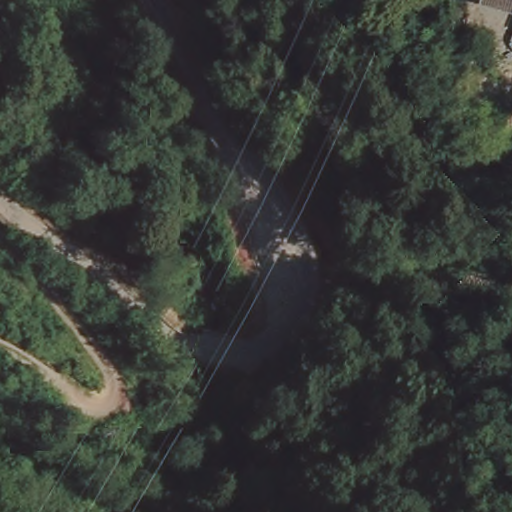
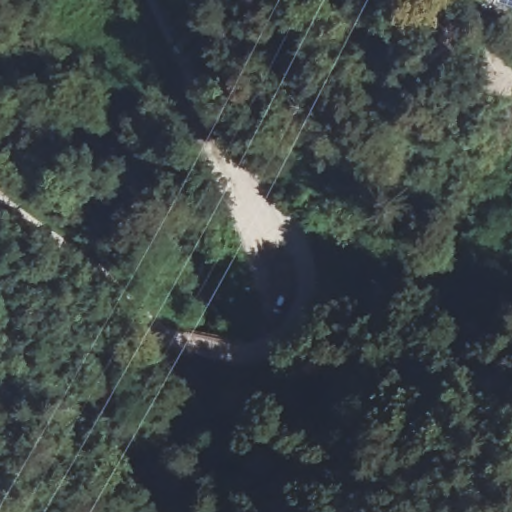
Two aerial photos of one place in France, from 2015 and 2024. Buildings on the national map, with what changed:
unchanged [(498,0),(512,0),(512,4),(498,0)]

